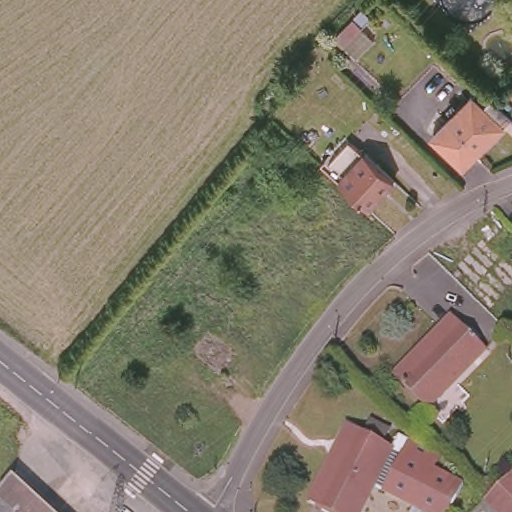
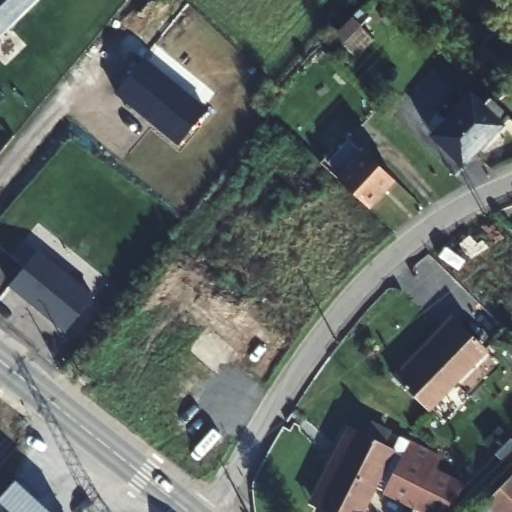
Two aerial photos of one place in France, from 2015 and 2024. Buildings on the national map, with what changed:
new [(40,0),(0,38),(0,0),(39,0),(40,0)]
new [(117,93),(144,60),(205,111),(179,143),(117,93)]
unchanged [(480,106),(487,99),(507,119),(460,167),(430,138),(470,97),(480,106)]
unchanged [(389,183),(367,208),(337,180),(360,155),(389,183)]
new [(95,297),(66,332),(9,286),(39,251),(95,297)]
unchanged [(426,406),(394,373),(409,357),(450,313),(456,318),(483,346),(426,406)]
unchanged [(397,439),(437,461),(431,473),(460,489),(447,512),(410,512),(412,508),(373,487),(360,512),(327,512),(314,505),(307,501),(335,449),(347,426),(390,450),(397,439)]
unchanged [(491,512),(481,503),(512,472),(512,512),(491,512)]
unchanged [(0,512),(0,496),(17,478),(53,512),(0,512)]

